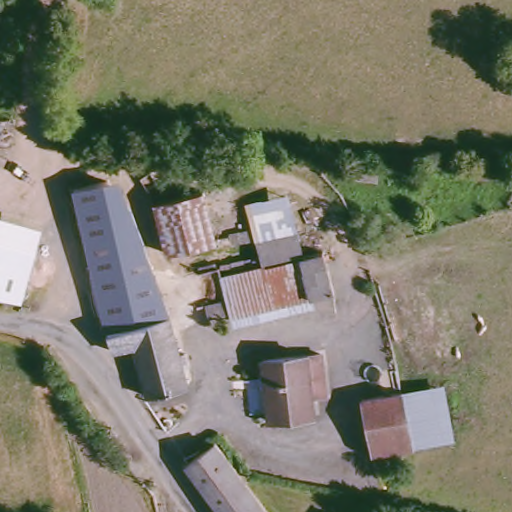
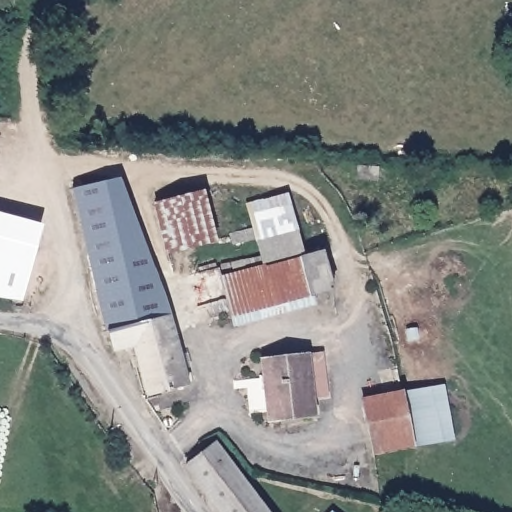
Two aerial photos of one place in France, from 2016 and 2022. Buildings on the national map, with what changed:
unchanged [(152,397),(137,349),(116,356),(107,311),(96,295),(87,229),(77,189),(115,183),(132,222),(143,224),(148,278),(161,275),(174,312),(193,386),(152,397)]
unchanged [(293,191),(306,255),(266,266),(252,203),(293,191)]
unchanged [(220,241),(170,252),(160,205),(207,193),(220,241)]
unchanged [(0,302),(0,213),(45,224),(22,305),(0,302)]
unchanged [(230,275),(266,266),(306,255),(331,248),(341,286),(237,314),(230,275)]
unchanged [(269,358),(316,353),(322,412),(275,416),(269,358)]
unchanged [(460,441),(417,450),(378,455),(365,398),(407,393),(451,385),(460,441)]
unchanged [(242,477),(270,512),(228,512),(191,465),(220,444),(242,477)]

